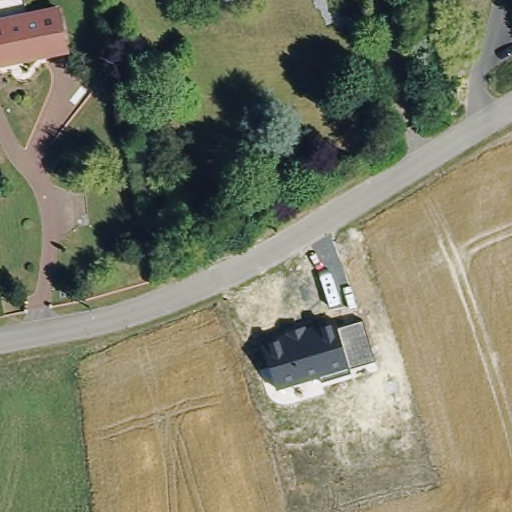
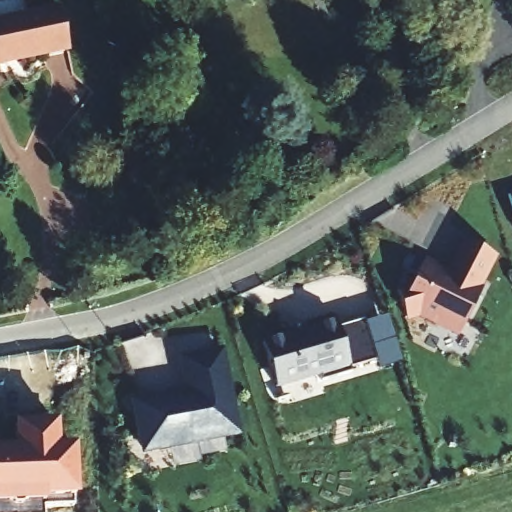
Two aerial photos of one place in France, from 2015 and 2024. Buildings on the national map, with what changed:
unchanged [(68,51),(68,55),(0,66),(0,22),(60,10),(68,51)]
new [(508,196),(512,195),(512,208),(508,196)]
new [(497,256),(457,337),(419,317),(407,322),(395,287),(415,280),(425,257),(446,269),(461,238),(497,256)]
unchanged [(376,360),(350,367),(351,373),(321,382),(320,376),(276,390),(261,341),(335,319),(337,326),(363,319),(376,360)]
new [(240,436),(139,454),(130,401),(183,391),(177,358),(222,349),(240,436)]
new [(75,447),(75,497),(74,505),(41,507),(41,512),(0,512),(0,450),(12,450),(12,423),(55,424),(56,448),(75,447)]

